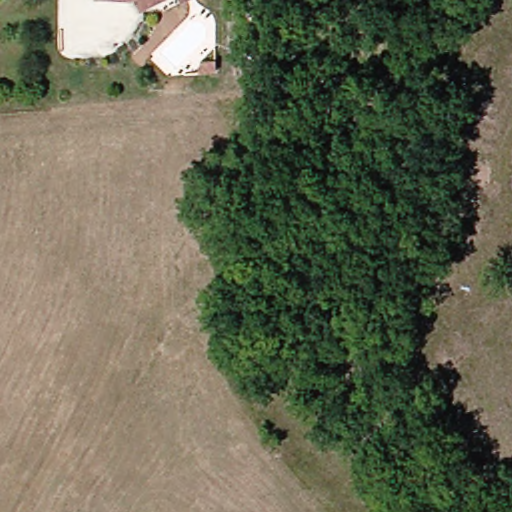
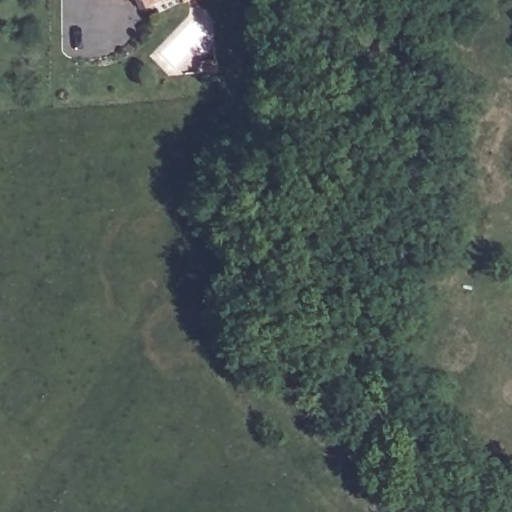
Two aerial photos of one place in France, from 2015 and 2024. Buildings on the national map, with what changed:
unchanged [(143,0),(163,0),(147,9),(143,0)]
unchanged [(191,73),(192,61),(207,60),(209,71),(191,73)]

